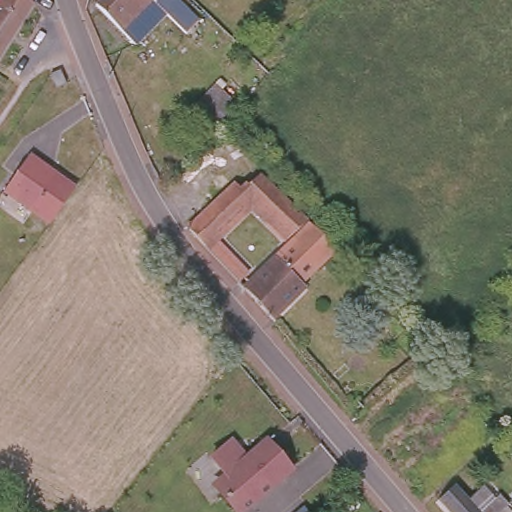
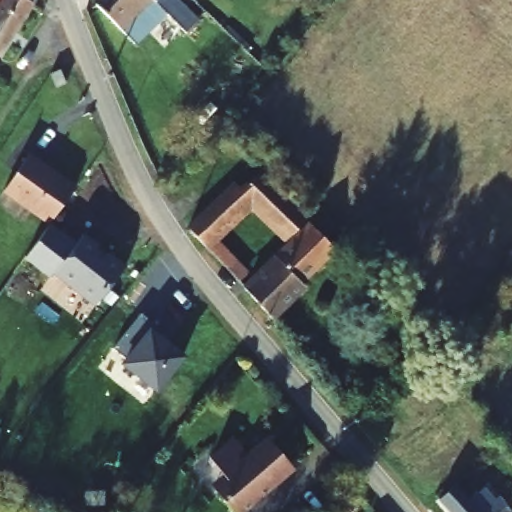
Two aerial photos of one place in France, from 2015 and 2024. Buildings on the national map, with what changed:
unchanged [(33,0),(0,54),(0,0),(32,0),(33,0)]
unchanged [(198,19),(186,31),(166,12),(134,41),(96,3),(100,0),(178,0),(198,19)]
unchanged [(46,77),(55,72),(61,85),(51,90),(46,77)]
demolished [(188,108),(216,80),(239,103),(213,132),(188,108)]
unchanged [(76,185),(49,225),(5,193),(33,153),(76,185)]
unchanged [(279,238),(253,211),(211,252),(184,227),(233,179),(241,188),(261,167),(306,212),(279,238)]
unchanged [(306,212),(331,236),(309,258),(299,267),(301,271),(300,272),(302,275),(269,307),(240,276),(235,271),(246,260),(251,266),(306,212)]
new [(75,242),(81,234),(125,265),(96,305),(53,273),(49,277),(25,258),(49,225),(75,242)]
new [(339,247),(304,283),(308,287),(279,317),(269,307),(302,275),(300,272),(301,271),(299,267),(309,258),(331,236),(339,247)]
new [(120,363),(125,357),(113,348),(141,313),(158,326),(156,330),(187,356),(158,393),(120,363)]
unchanged [(212,453),(233,436),(248,453),(268,436),(291,465),(242,506),(224,486),(218,478),(227,470),(212,453)]
unchanged [(453,477),(468,492),(479,482),(491,495),(494,491),(502,500),(501,501),(511,512),(450,512),(434,494),(453,477)]

